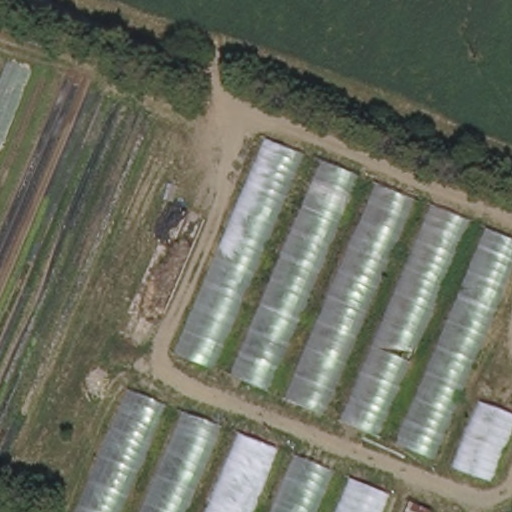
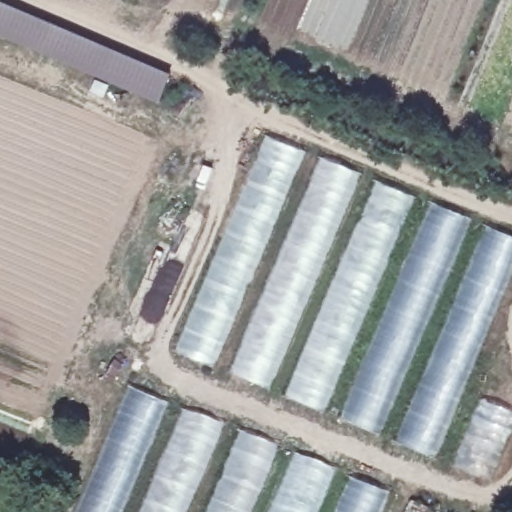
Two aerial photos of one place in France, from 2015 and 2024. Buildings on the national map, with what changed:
new [(161,105),(0,36),(0,1),(173,75),(161,105)]
unchanged [(512,235),(512,284),(438,458),(177,350),(265,135),(512,235)]
unchanged [(382,512),(76,512),(128,384),(389,494),(382,512)]
unchanged [(512,410),(512,436),(492,483),(456,470),(484,399),(512,410)]
unchanged [(438,512),(408,512),(411,500),(440,507),(438,512)]

